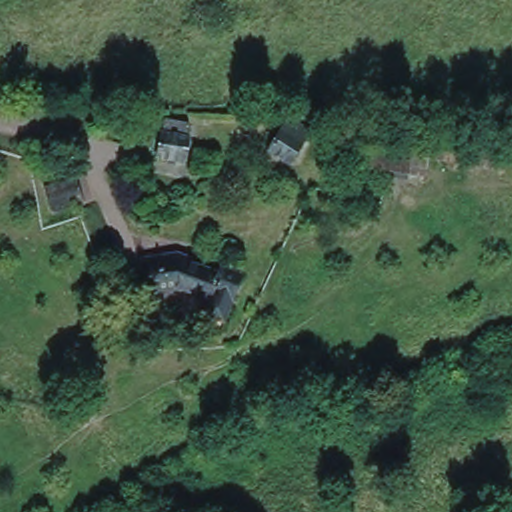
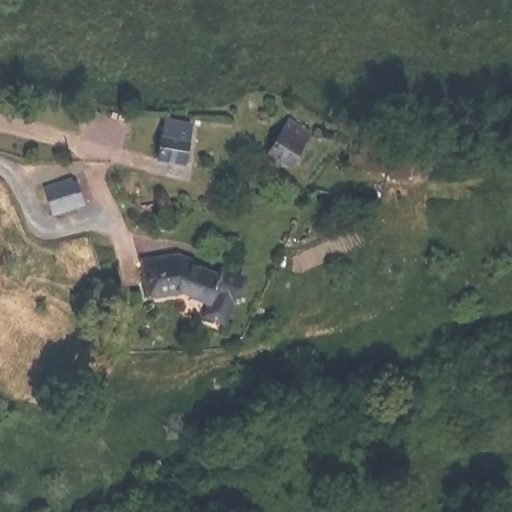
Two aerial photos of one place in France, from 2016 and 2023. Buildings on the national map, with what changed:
unchanged [(180,162),(155,159),(159,122),(185,126),(180,162)]
unchanged [(289,170),(266,156),(285,125),(308,140),(289,170)]
unchanged [(437,147),(436,172),(353,166),(355,141),(437,147)]
unchanged [(82,204),(57,212),(49,192),(74,182),(82,204)]
unchanged [(207,308),(212,296),(180,284),(154,287),(151,258),(179,255),(222,270),(225,263),(245,271),(235,295),(227,316),(207,308)]

